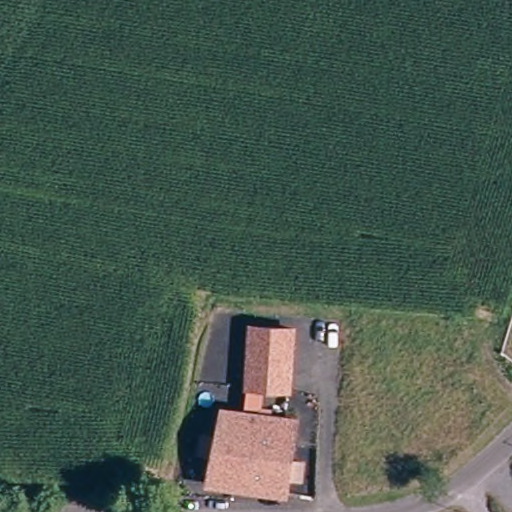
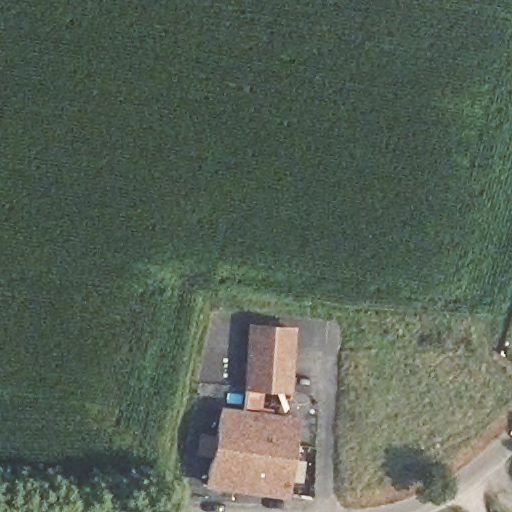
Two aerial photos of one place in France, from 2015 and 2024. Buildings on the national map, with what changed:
unchanged [(286,394),(246,390),(254,330),(293,334),(286,394)]
unchanged [(287,493),(212,483),(219,410),(295,420),(287,493)]

